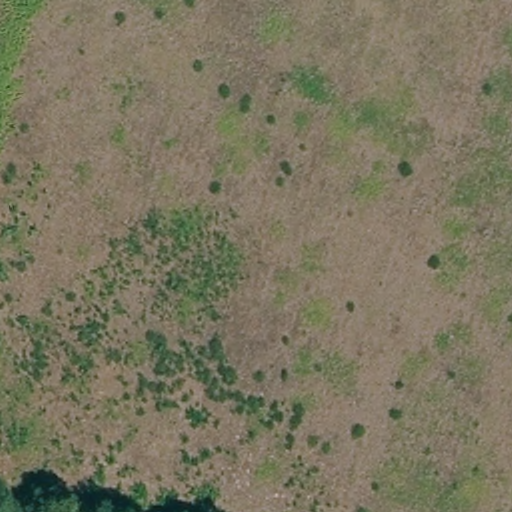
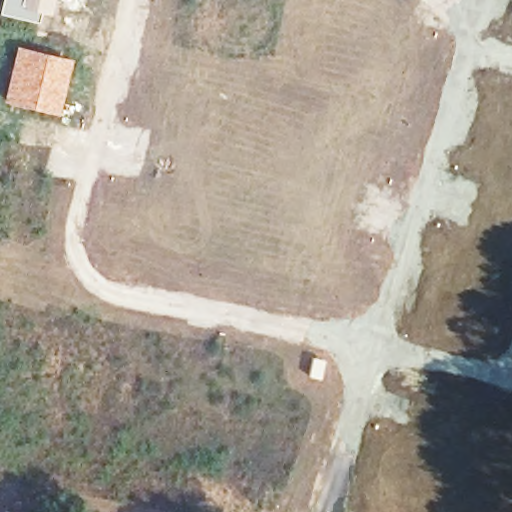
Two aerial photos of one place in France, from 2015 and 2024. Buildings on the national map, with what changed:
new [(40,12),(37,23),(0,15),(0,0),(51,0),(48,14),(40,12)]
new [(14,44),(71,57),(56,115),(0,102),(14,44)]

